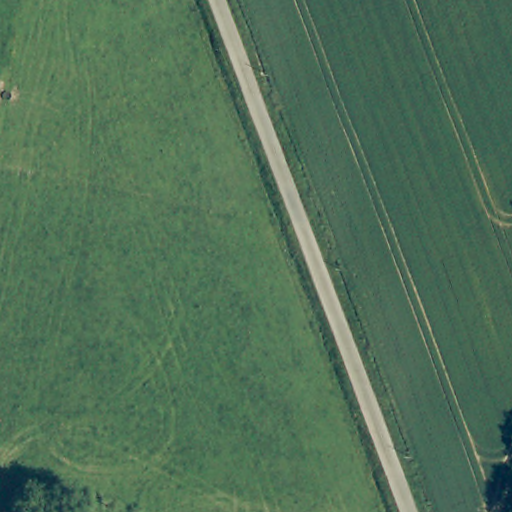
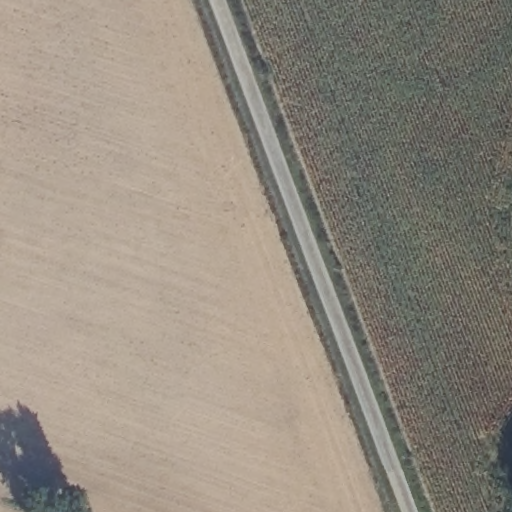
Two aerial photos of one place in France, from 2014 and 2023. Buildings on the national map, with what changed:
[]

